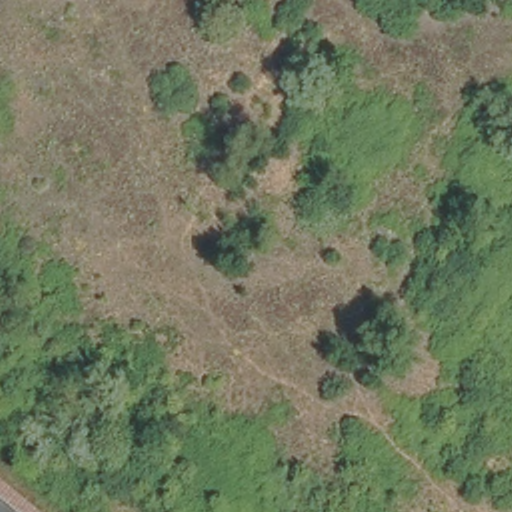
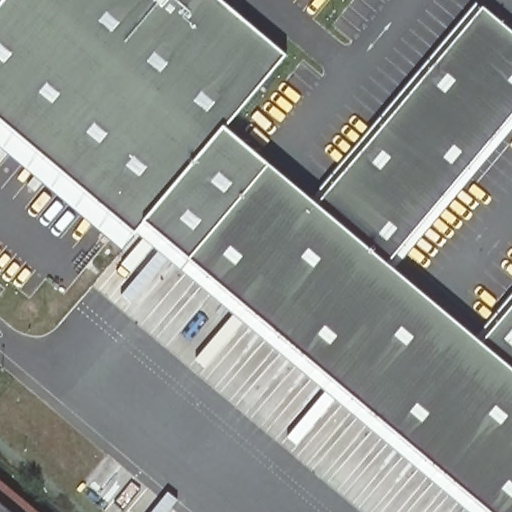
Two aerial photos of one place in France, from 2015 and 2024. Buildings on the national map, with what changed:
new [(145,226),(135,237),(0,123),(0,4),(4,0),(219,0),(287,57),(226,129),(224,127),(142,223),(145,226)]
new [(512,34),(512,119),(388,267),(314,205),(481,8),(512,34)]
new [(189,261),(268,167),(314,205),(388,267),(480,344),(512,371),(512,512),(484,512),(189,261)]
new [(480,344),(512,305),(512,371),(480,344)]
unchanged [(0,498),(17,512),(0,512),(0,498)]

